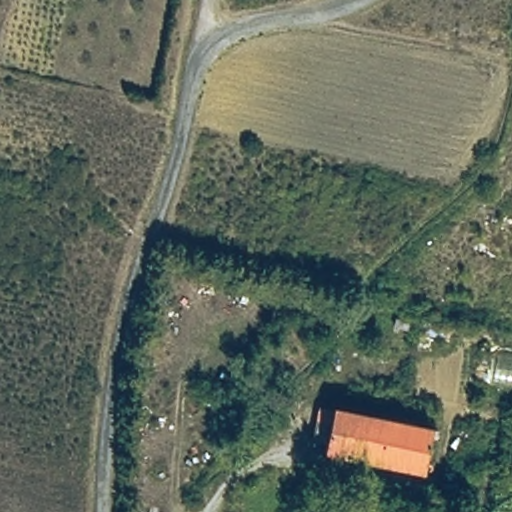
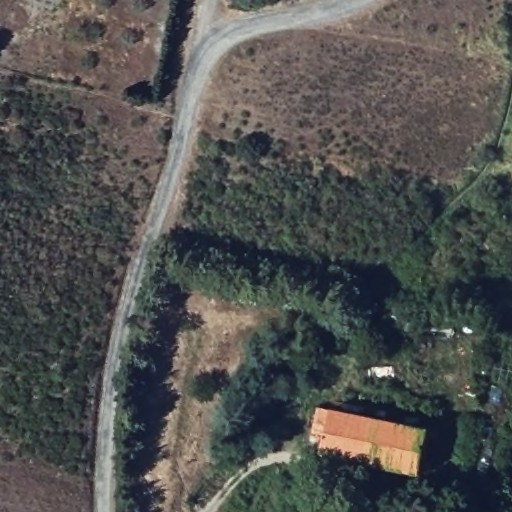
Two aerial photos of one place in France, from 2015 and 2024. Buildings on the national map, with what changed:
unchanged [(331,407),(431,428),(422,472),(321,453),(331,407)]

